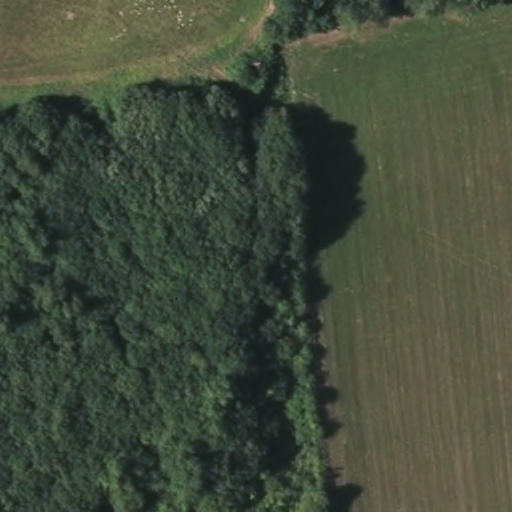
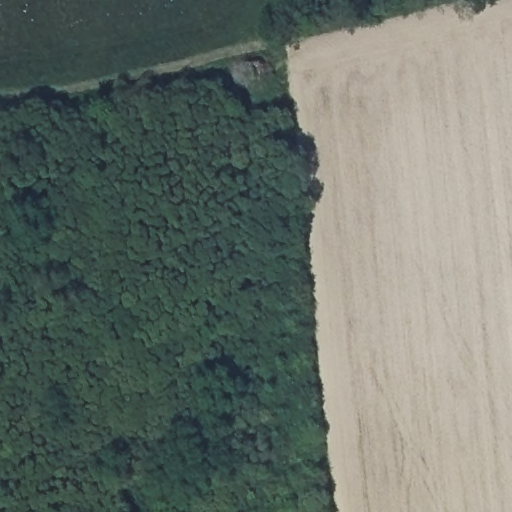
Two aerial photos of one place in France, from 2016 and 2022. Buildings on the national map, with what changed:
unchanged [(281,68),(281,83),(268,82),(267,66),(267,50),(280,46),(281,68)]

